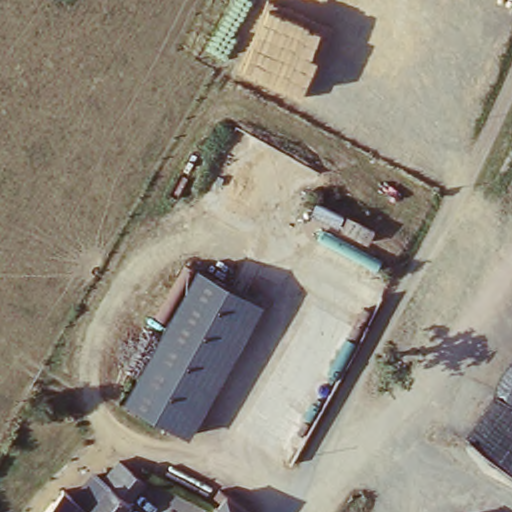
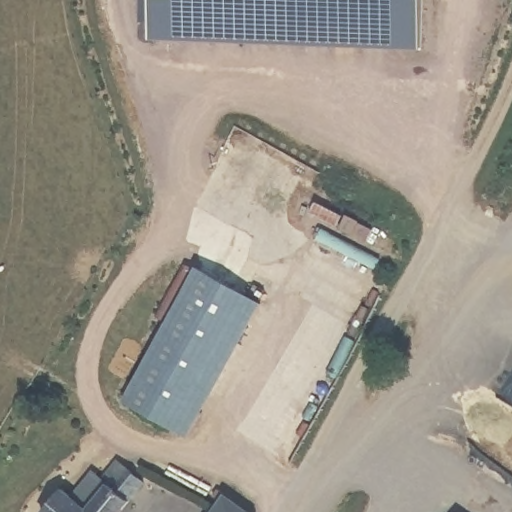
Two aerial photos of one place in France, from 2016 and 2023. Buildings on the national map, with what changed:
new [(150,33),(151,0),(421,0),(418,48),(150,33)]
unchanged [(200,278),(262,313),(189,447),(126,410),(200,278)]
unchanged [(90,482),(100,491),(120,468),(146,487),(126,512),(55,512),(64,502),(70,507),(90,482)]
unchanged [(224,505),(214,496),(220,487),(229,494),(250,512),(218,512),(224,505)]

